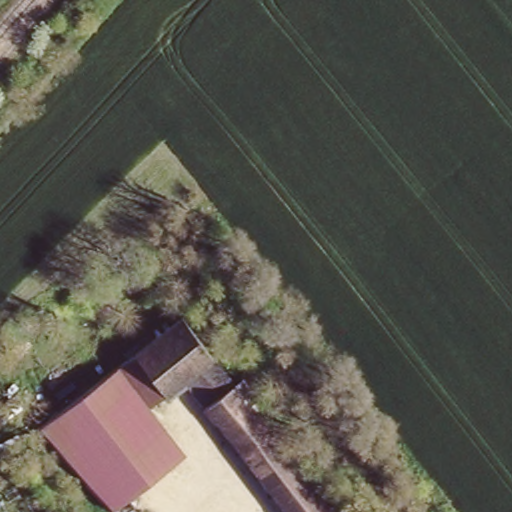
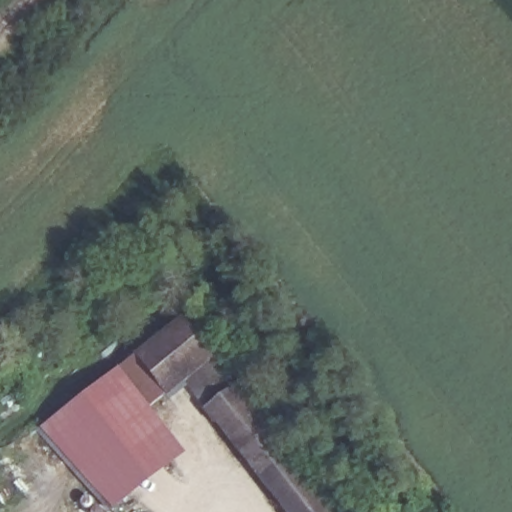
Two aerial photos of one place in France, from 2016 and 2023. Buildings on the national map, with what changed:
unchanged [(122,364),(186,316),(236,380),(243,374),(255,388),(244,396),(337,512),(284,512),(178,376),(153,396),(122,364)]
unchanged [(122,364),(153,396),(146,402),(182,448),(114,512),(111,512),(43,426),(83,395),(122,364)]

